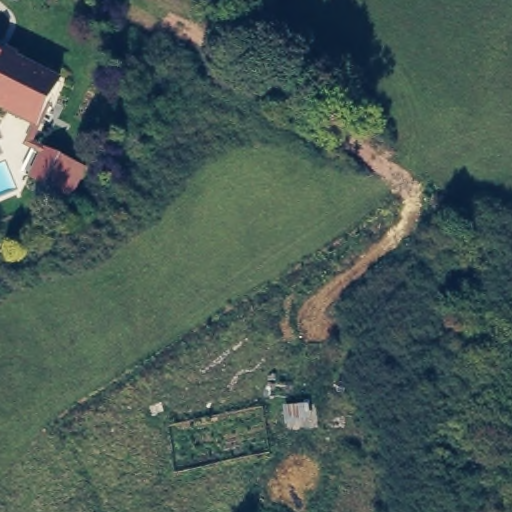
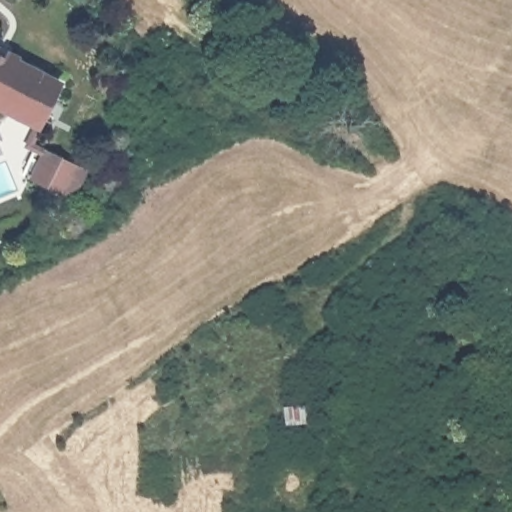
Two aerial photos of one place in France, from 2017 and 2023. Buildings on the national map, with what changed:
unchanged [(35,122),(0,104),(0,52),(56,80),(35,122)]
unchanged [(65,164),(55,189),(37,181),(50,156),(65,164)]

